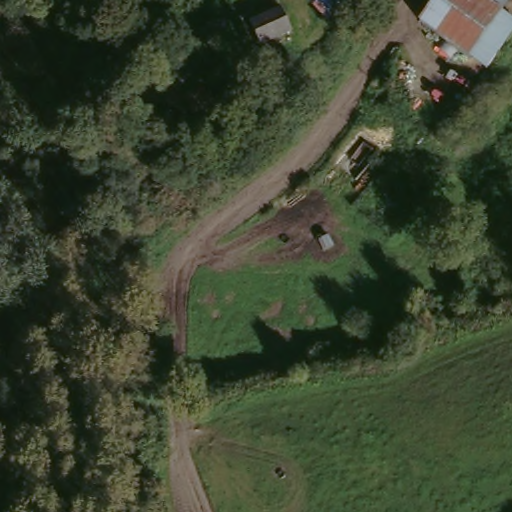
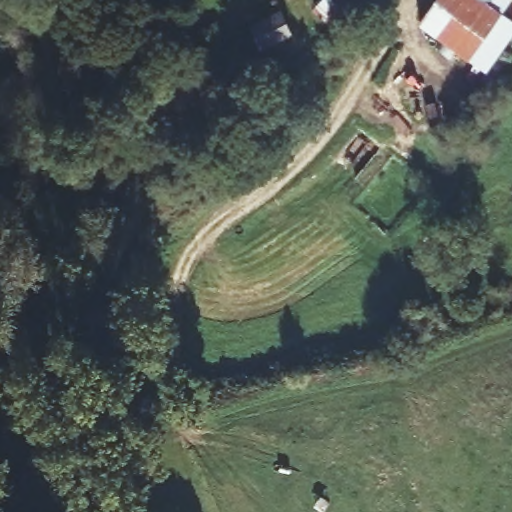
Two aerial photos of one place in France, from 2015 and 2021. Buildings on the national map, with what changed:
unchanged [(314,7),(322,0),(353,0),(328,24),(314,7)]
unchanged [(491,5),(503,14),(471,58),(420,24),(436,0),(482,0),(491,5)]
unchanged [(482,0),(494,0),(491,5),(482,0)]
unchanged [(260,47),(249,25),(282,12),(290,34),(260,47)]

